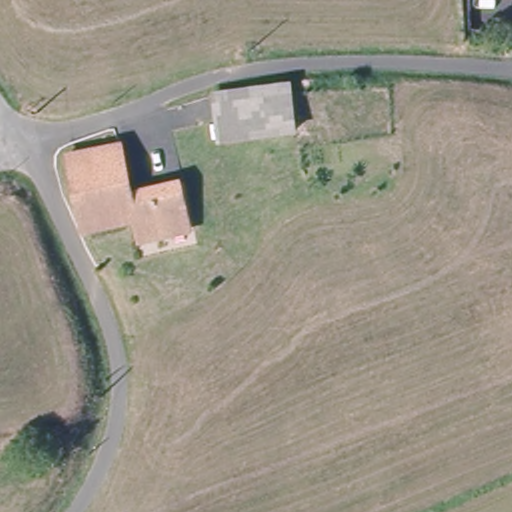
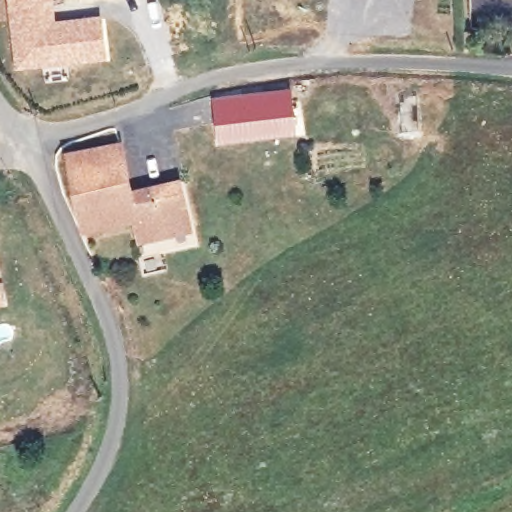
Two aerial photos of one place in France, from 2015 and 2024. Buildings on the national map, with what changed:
new [(103,15),(108,59),(16,68),(7,0),(55,0),(57,20),(103,15)]
unchanged [(221,129),(219,101),(289,92),(294,122),(221,129)]
unchanged [(134,184),(179,175),(192,224),(140,236),(135,219),(84,228),(69,148),(123,140),(134,184)]
new [(0,306),(0,281),(5,304),(0,306)]

